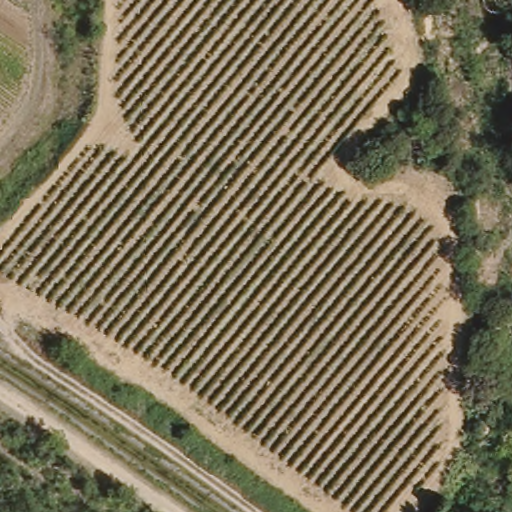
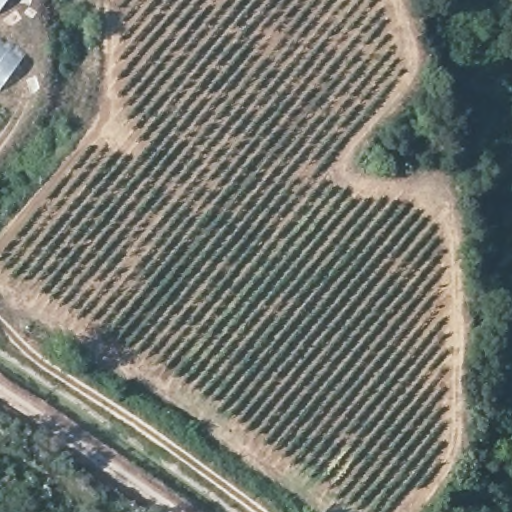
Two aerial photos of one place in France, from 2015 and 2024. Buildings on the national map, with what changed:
new [(0,0),(8,0),(0,12),(0,0)]
new [(1,90),(0,89),(0,37),(26,56),(1,90)]

